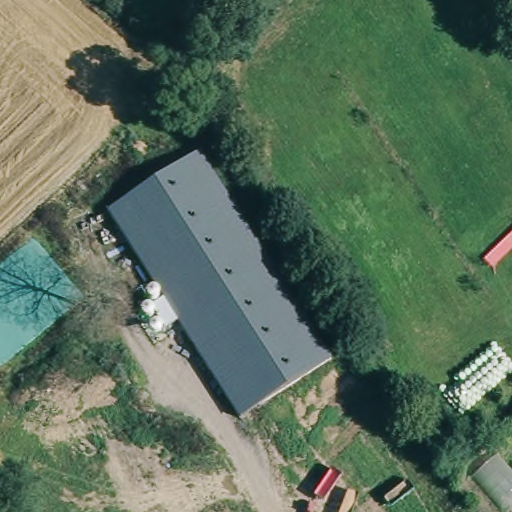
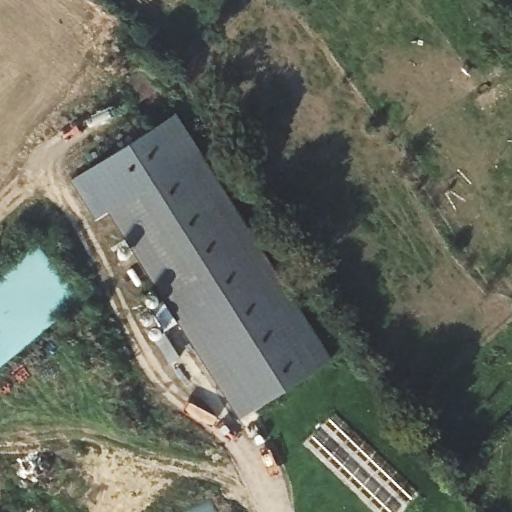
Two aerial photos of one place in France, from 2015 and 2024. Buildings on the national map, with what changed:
new [(96,220),(70,180),(175,113),(199,151),(108,210),(96,220)]
unchanged [(176,323),(164,329),(150,306),(162,299),(108,210),(199,151),(333,358),(240,417),(176,323)]

